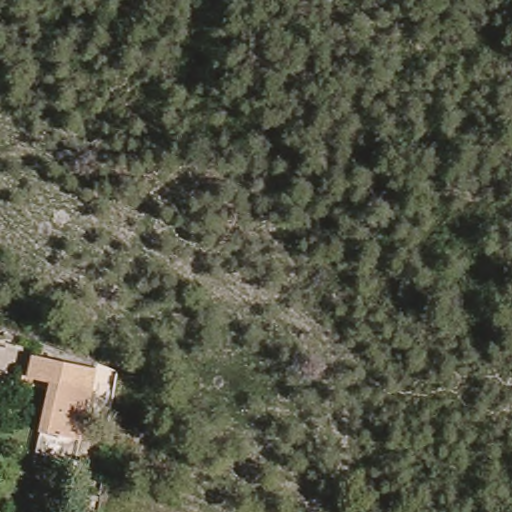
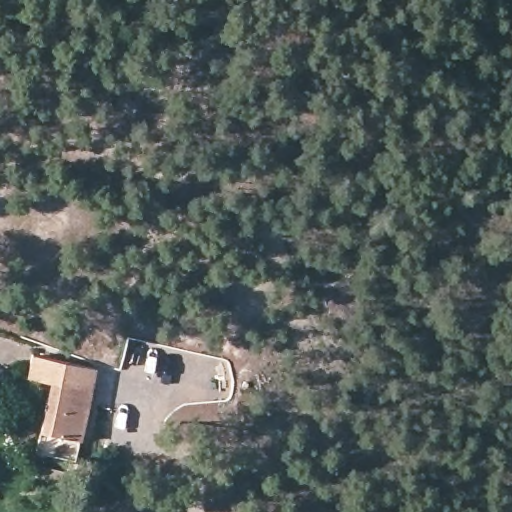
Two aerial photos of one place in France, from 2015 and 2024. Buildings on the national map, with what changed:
unchanged [(44,431),(51,385),(30,381),(34,354),(95,366),(82,438),(44,431)]

